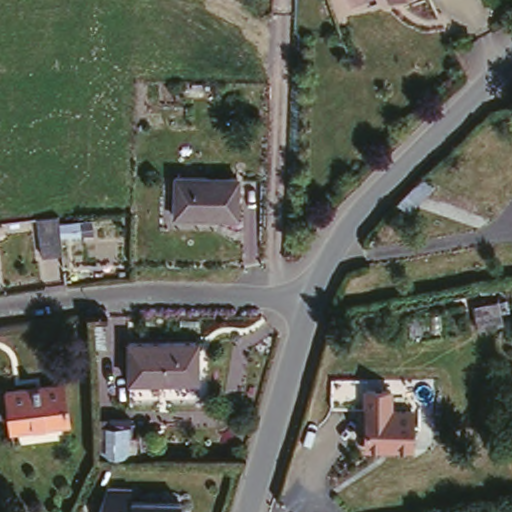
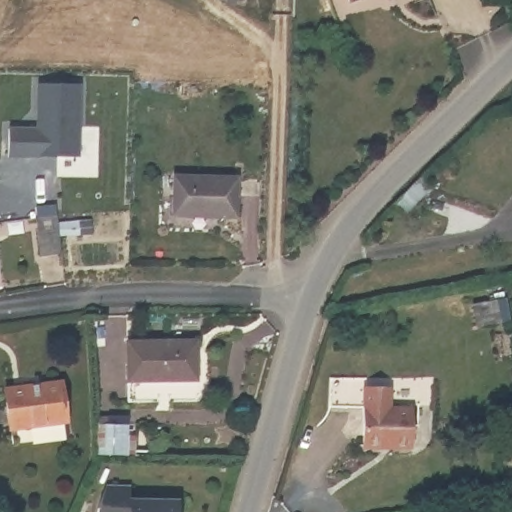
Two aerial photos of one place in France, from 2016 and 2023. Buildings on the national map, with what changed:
demolished [(512,2),(512,22),(484,21),(478,2),(512,2)]
new [(37,127),(37,84),(82,84),(82,156),(11,156),(11,126),(37,127)]
unchanged [(239,172),(237,214),(175,212),(177,170),(239,172)]
unchanged [(433,184),(411,208),(397,201),(418,178),(433,184)]
unchanged [(44,258),(39,226),(59,223),(80,221),(82,235),(62,239),(64,254),(44,258)]
unchanged [(0,267),(0,256),(3,267),(0,267)]
unchanged [(107,322),(107,348),(90,347),(89,322),(107,322)]
unchanged [(197,335),(198,375),(130,378),(129,338),(197,335)]
unchanged [(63,378),(69,417),(12,426),(5,385),(63,378)]
unchanged [(414,409),(414,446),(366,446),(367,408),(414,409)]
unchanged [(102,505),(111,484),(135,483),(135,496),(185,497),(185,512),(103,512),(102,505)]

